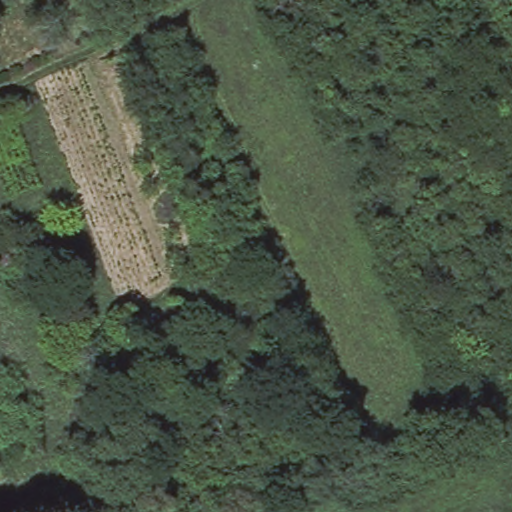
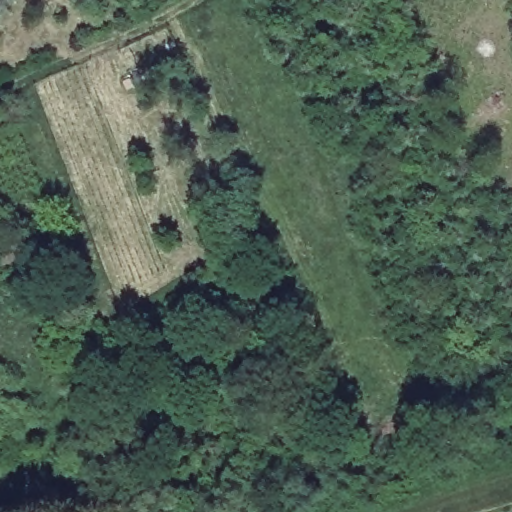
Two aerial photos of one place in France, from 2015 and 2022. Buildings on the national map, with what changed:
unchanged [(17,257),(2,263),(0,258),(0,246),(10,241),(17,257)]

